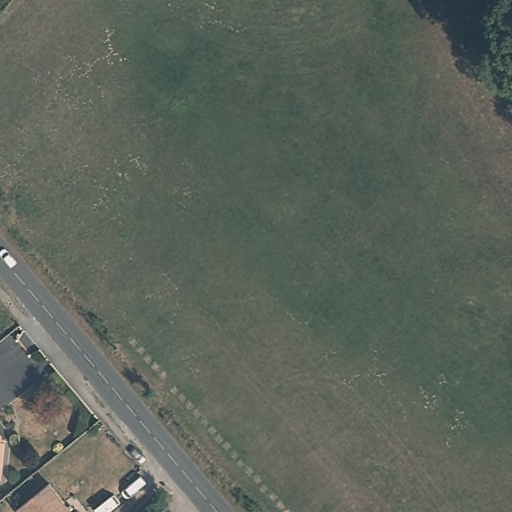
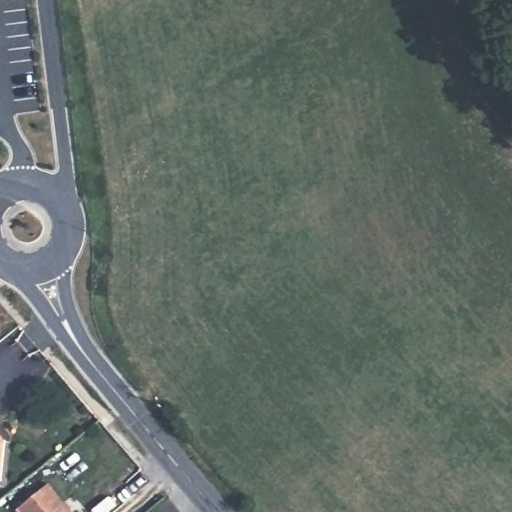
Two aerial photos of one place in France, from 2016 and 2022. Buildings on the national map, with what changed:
unchanged [(10,436),(5,476),(0,476),(0,423),(10,436)]
unchanged [(69,512),(18,512),(49,487),(69,512)]

